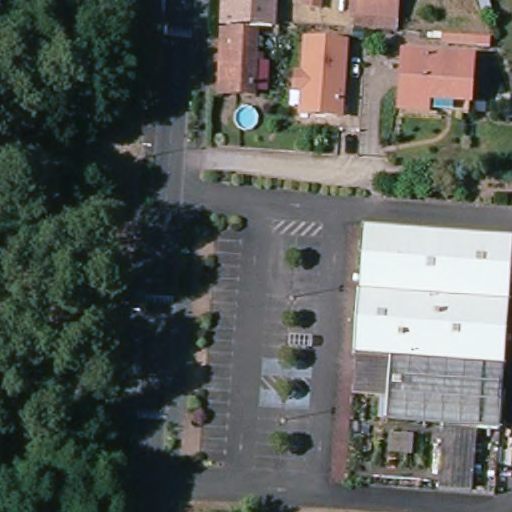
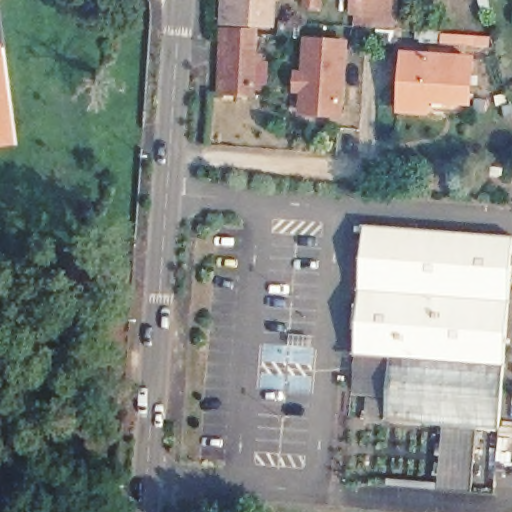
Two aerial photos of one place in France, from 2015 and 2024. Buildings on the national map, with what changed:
unchanged [(220,22),(222,0),(272,0),(271,25),(220,22)]
unchanged [(321,0),(320,10),(301,8),(302,0),(321,0)]
unchanged [(342,21),(345,0),(387,0),(383,33),(348,30),(349,22),(342,21)]
unchanged [(253,95),(218,94),(219,78),(220,31),(229,32),(255,32),(253,95)]
unchanged [(305,41),(343,45),(337,117),(300,114),(301,92),(293,91),(295,75),(302,76),(305,41)]
new [(16,145),(0,147),(0,44),(5,43),(16,145)]
unchanged [(404,55),(471,60),(468,113),(400,108),(404,55)]
unchanged [(356,237),(506,245),(496,438),(383,432),(386,369),(350,367),(356,237)]

